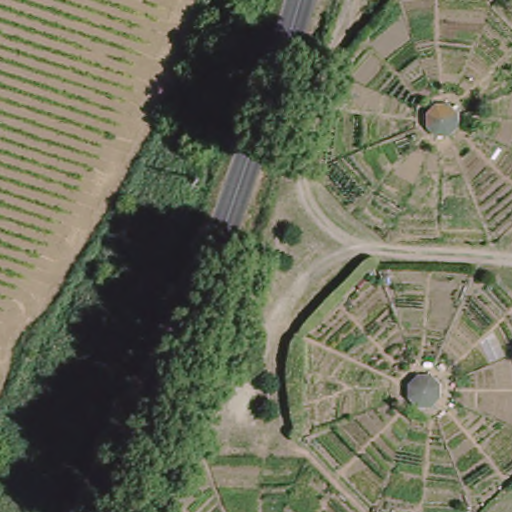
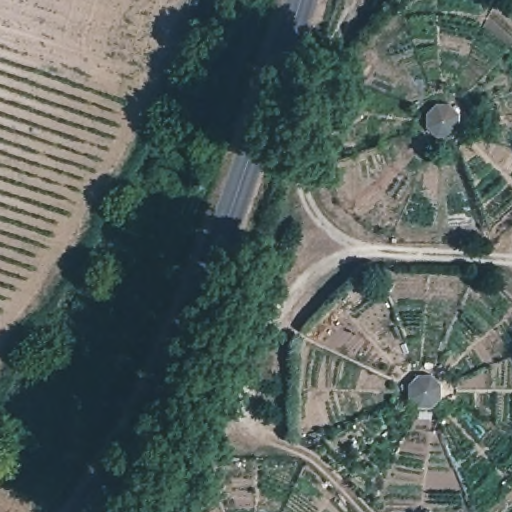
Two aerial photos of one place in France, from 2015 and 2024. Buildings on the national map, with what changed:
unchanged [(458,110),(457,130),(443,141),(425,131),(425,113),(444,101),(458,110)]
unchanged [(440,384),(440,397),(427,407),(411,401),(411,384),(425,373),(440,384)]

